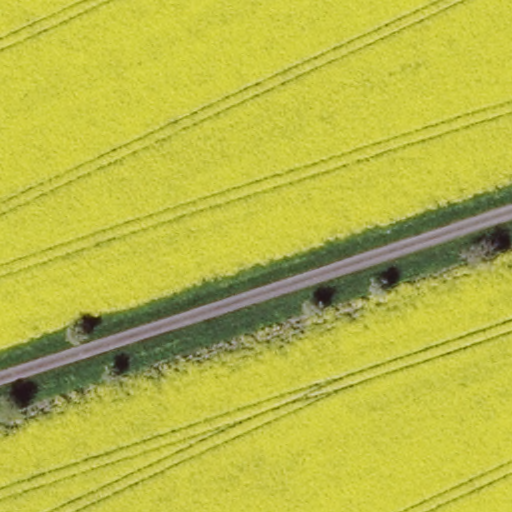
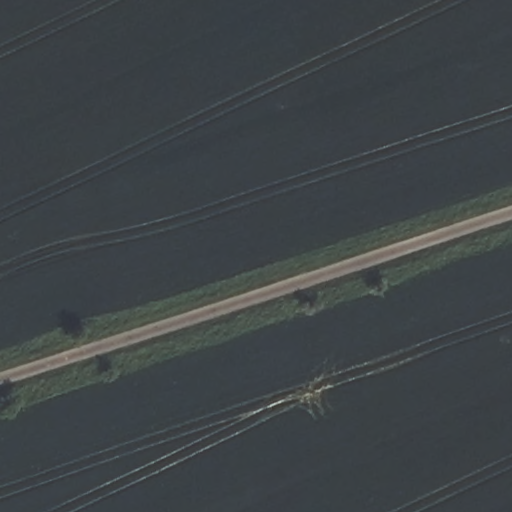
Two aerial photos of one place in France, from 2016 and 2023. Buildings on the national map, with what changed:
[]

